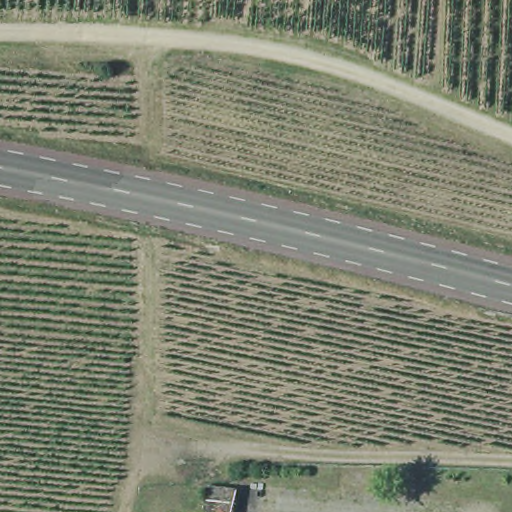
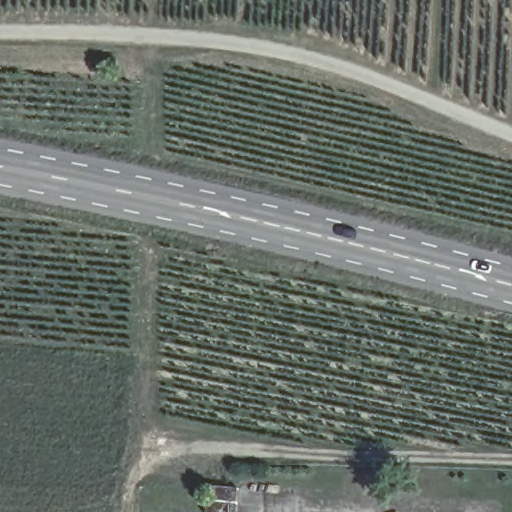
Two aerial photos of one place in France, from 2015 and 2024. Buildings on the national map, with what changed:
unchanged [(227,485),(260,488),(259,503),(258,512),(225,512),(226,500),(227,485)]

